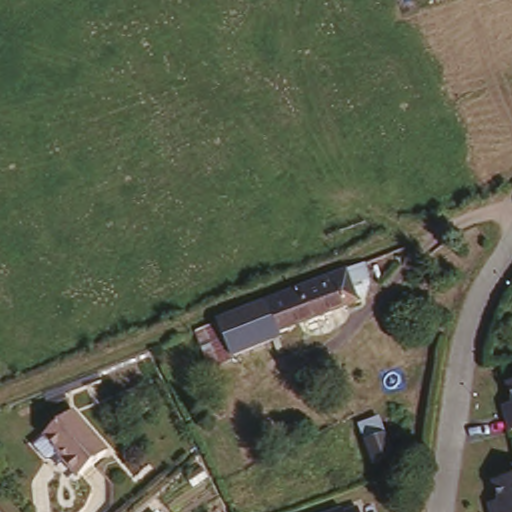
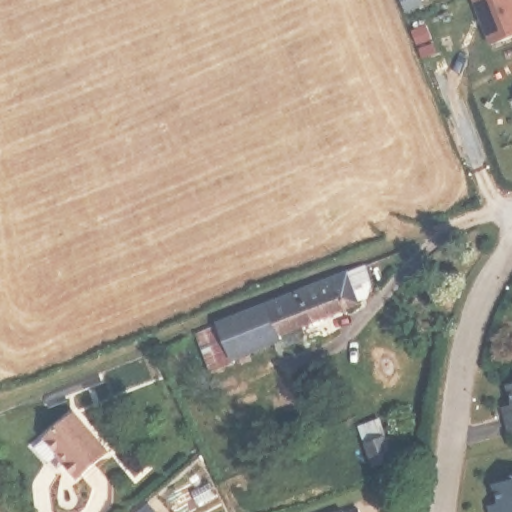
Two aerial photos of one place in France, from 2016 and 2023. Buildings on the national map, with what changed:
new [(512,36),(490,44),(473,0),(512,0),(512,36)]
unchanged [(346,272),(367,263),(373,284),(370,293),(358,300),(280,331),(282,338),(235,357),(231,350),(216,356),(205,330),(221,320),(346,272)]
unchanged [(512,435),(507,436),(501,415),(511,412),(506,385),(512,383),(512,435)]
unchanged [(69,415),(104,455),(75,478),(60,462),(62,459),(42,436),(69,415)]
unchanged [(387,439),(367,446),(360,424),(380,416),(387,439)]
unchanged [(360,449),(387,439),(392,451),(399,447),(402,456),(393,460),(367,469),(360,449)]
unchanged [(512,512),(492,512),(488,494),(512,486),(512,512)]
unchanged [(360,512),(345,512),(358,507),(360,512)]

